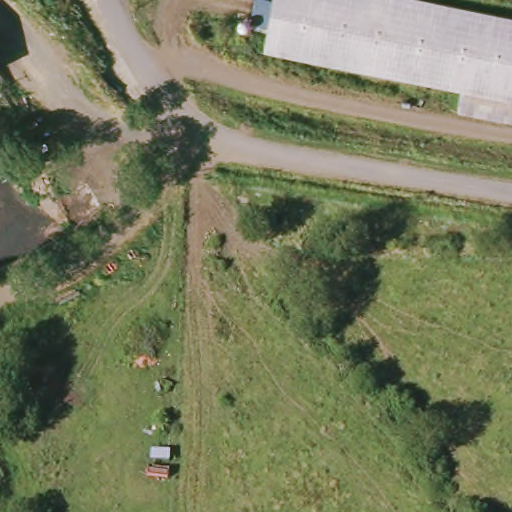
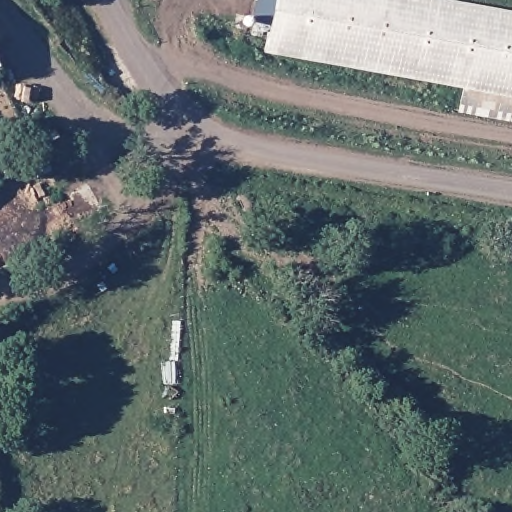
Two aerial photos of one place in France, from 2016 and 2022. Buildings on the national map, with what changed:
unchanged [(456,81),(262,45),(268,11),(255,10),(255,0),(441,0),(512,13),(512,118),(454,106),(456,81)]

